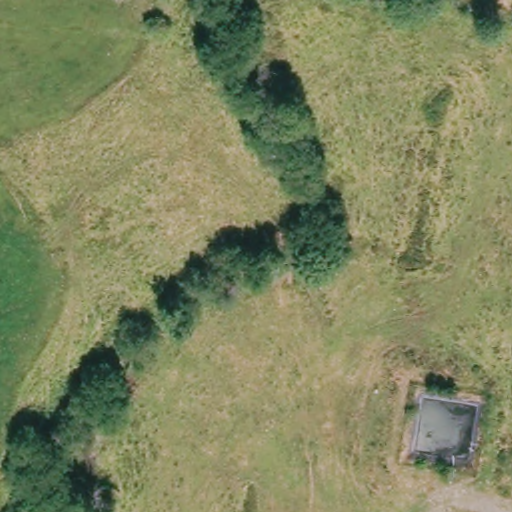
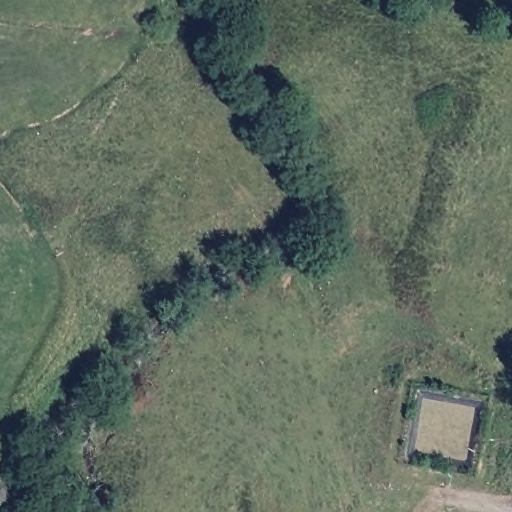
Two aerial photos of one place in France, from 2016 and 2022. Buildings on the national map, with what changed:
[]

